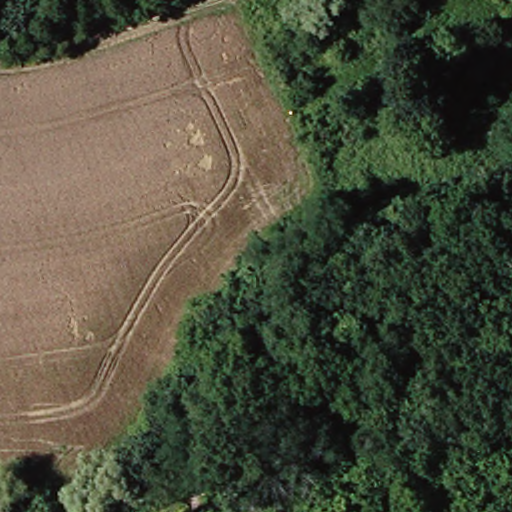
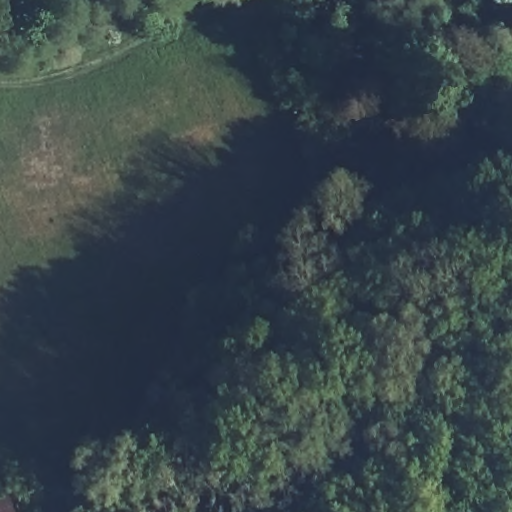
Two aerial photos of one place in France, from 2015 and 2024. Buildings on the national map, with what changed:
unchanged [(4,505),(7,512),(0,512),(0,506),(4,505)]

